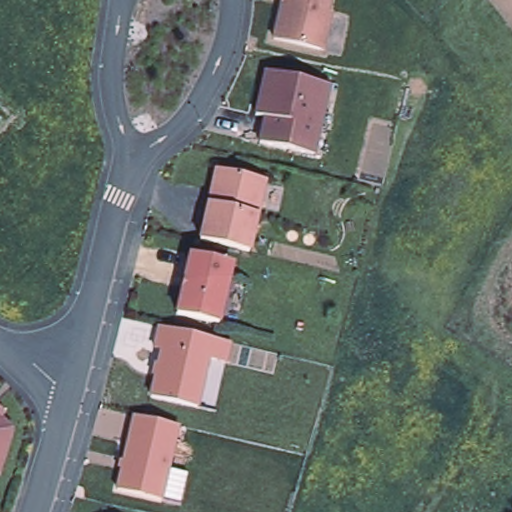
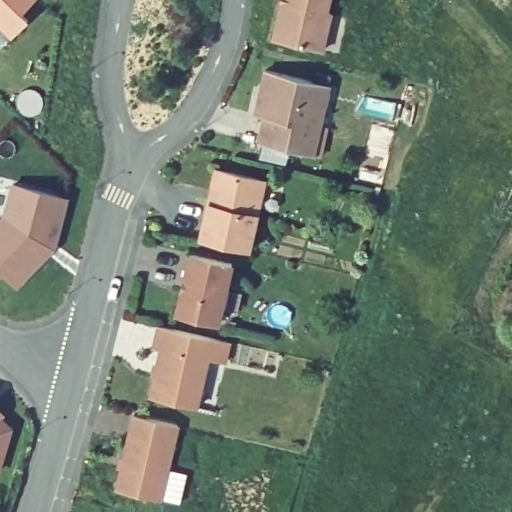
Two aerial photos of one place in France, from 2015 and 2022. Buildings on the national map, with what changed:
new [(22,13),(29,20),(11,38),(0,27),(0,0),(35,0),(22,13)]
unchanged [(329,12),(333,13),(324,51),(276,40),(284,0),(331,0),(329,12)]
unchanged [(335,91),(331,108),(329,117),(324,115),(321,115),(319,119),(311,159),(285,153),(257,146),(263,121),(253,118),(263,75),(335,91)]
unchanged [(246,255),(197,244),(206,207),(209,190),(213,173),(262,184),(246,255)]
new [(68,197),(56,248),(16,289),(0,273),(0,219),(3,217),(11,183),(68,197)]
unchanged [(229,267),(216,327),(173,317),(187,257),(229,267)]
unchanged [(228,370),(211,366),(199,415),(153,404),(164,357),(156,356),(161,334),(214,346),(232,350),(228,370)]
unchanged [(3,416),(0,419),(0,413),(3,416)]
unchanged [(12,432),(0,471),(0,420),(12,432)]
unchanged [(163,508),(118,498),(136,423),(180,433),(163,508)]

